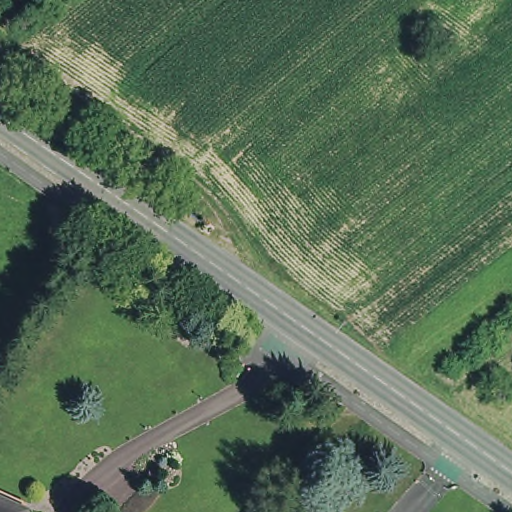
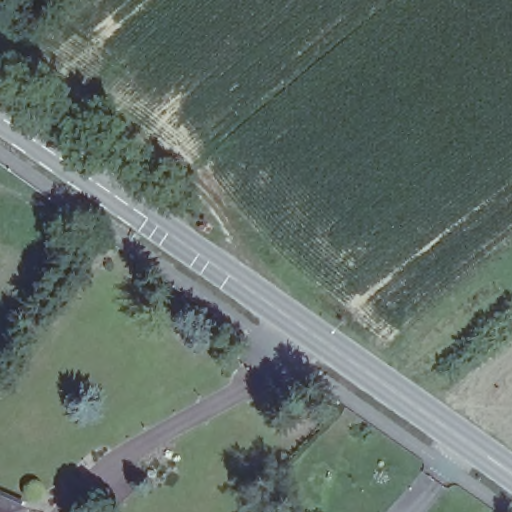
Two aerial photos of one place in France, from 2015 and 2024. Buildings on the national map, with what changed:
unchanged [(17,502),(12,512),(0,512),(0,495),(17,502)]

